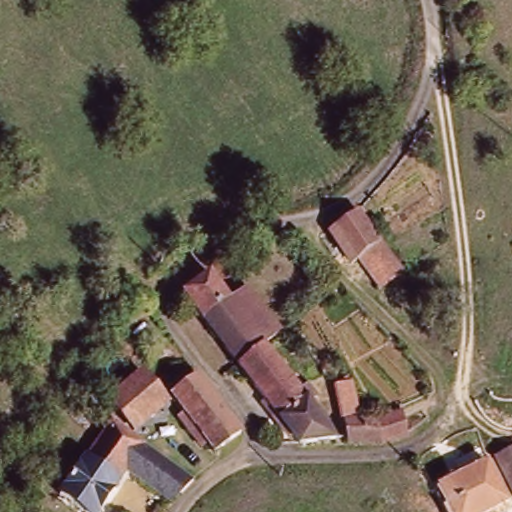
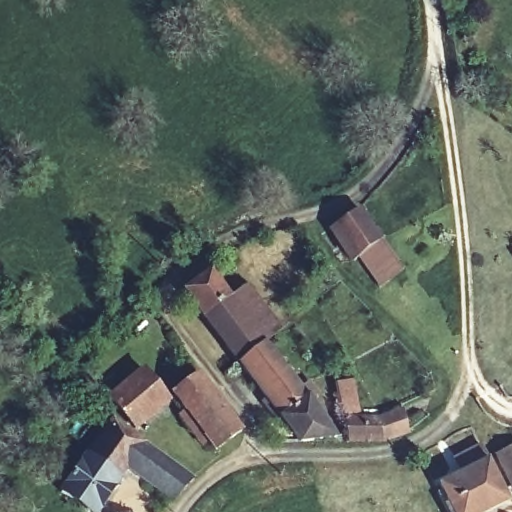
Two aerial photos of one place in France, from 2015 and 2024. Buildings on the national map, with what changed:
unchanged [(379,237),(357,254),(351,260),(328,227),(356,205),(379,237)]
unchanged [(402,267),(380,286),(357,254),(379,237),(402,267)]
unchanged [(234,243),(248,260),(236,270),(219,250),(234,243)]
unchanged [(204,270),(226,294),(242,283),(278,326),(261,340),(236,361),(218,376),(207,362),(226,346),(183,287),(204,270)]
unchanged [(261,340),(339,437),(294,437),(236,361),(261,340)]
unchanged [(137,428),(108,396),(143,365),(171,398),(137,428)]
unchanged [(222,450),(175,391),(198,370),(241,430),(222,450)]
unchanged [(323,388),(321,382),(353,375),(363,419),(400,416),(405,436),(401,438),(346,437),(333,387),(323,388)]
unchanged [(83,438),(105,413),(195,480),(171,507),(128,474),(91,511),(65,490),(98,450),(83,438)]
unchanged [(512,446),(512,474),(501,451),(512,446)]
unchanged [(504,497),(475,512),(452,512),(439,485),(487,461),(504,497)]

